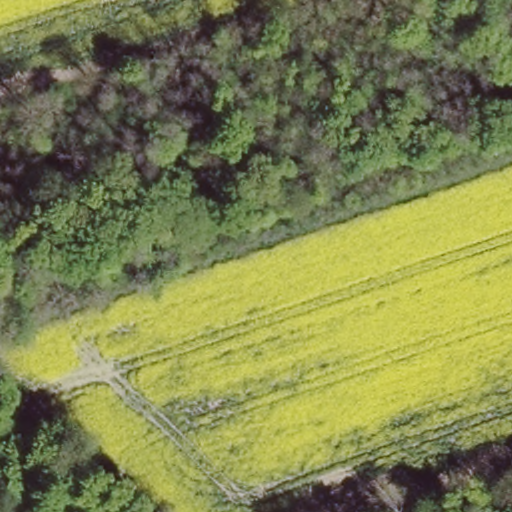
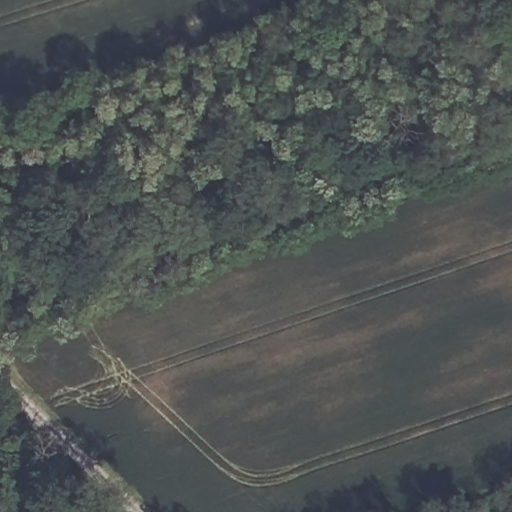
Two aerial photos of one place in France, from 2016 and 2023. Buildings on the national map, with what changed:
[]

